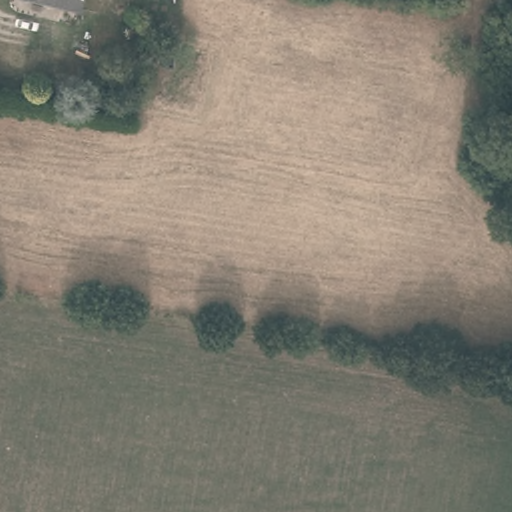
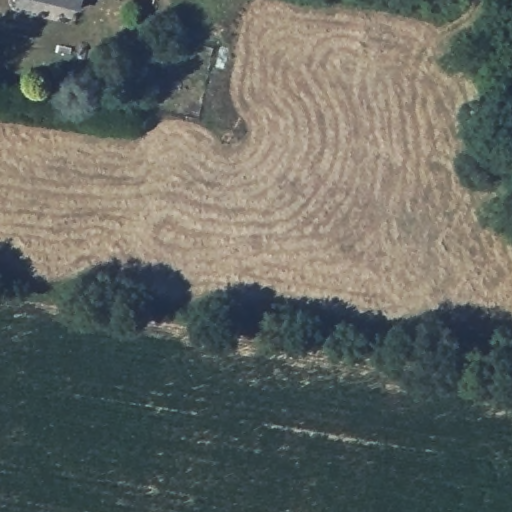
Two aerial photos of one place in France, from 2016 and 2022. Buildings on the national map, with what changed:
unchanged [(48,0),(80,0),(79,6),(48,0)]

